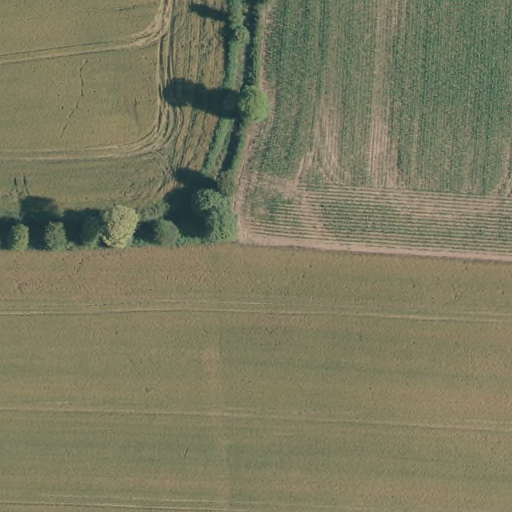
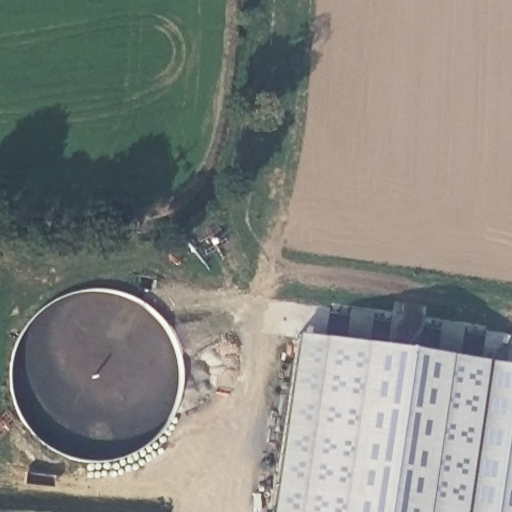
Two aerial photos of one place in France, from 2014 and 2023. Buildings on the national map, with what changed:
new [(484,361),(512,366),(512,512),(271,512),(298,334),(484,361)]

